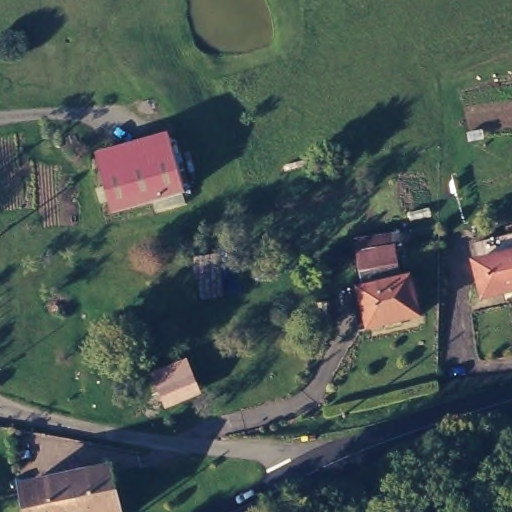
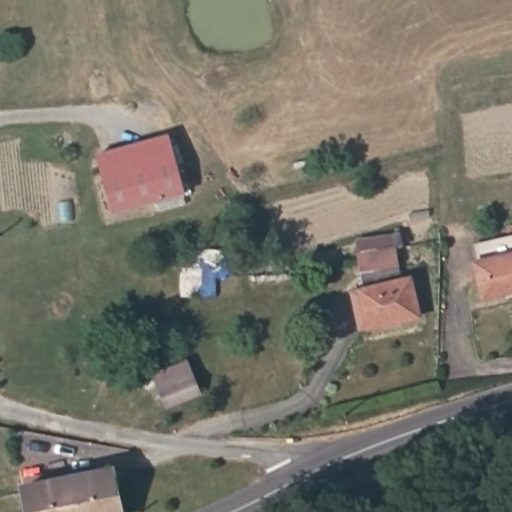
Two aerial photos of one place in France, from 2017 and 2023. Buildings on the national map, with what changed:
unchanged [(92,143),(165,123),(180,178),(107,198),(92,143)]
unchanged [(357,287),(365,286),(365,285),(369,284),(366,267),(363,249),(365,249),(362,235),(405,229),(407,242),(401,244),(406,276),(416,273),(425,312),(374,323),(365,325),(360,302),(357,287)]
unchanged [(512,237),(512,292),(489,297),(480,263),(484,263),(480,245),(512,237)]
unchanged [(30,512),(23,476),(114,456),(124,506),(92,512),(30,512)]

